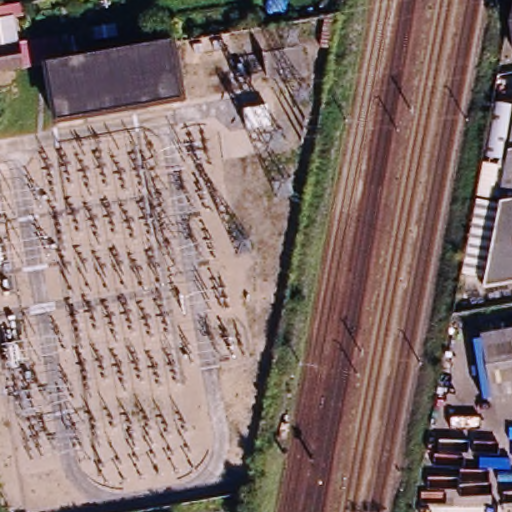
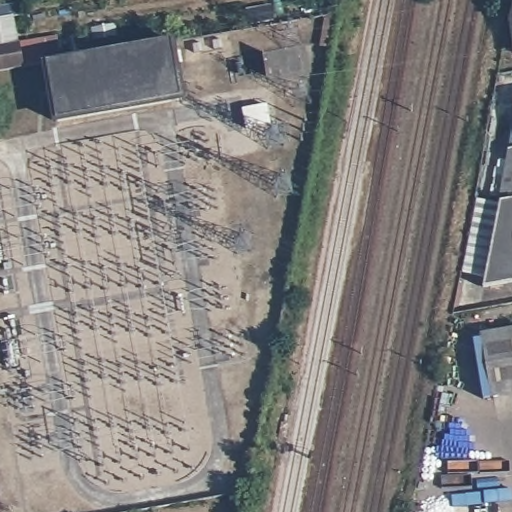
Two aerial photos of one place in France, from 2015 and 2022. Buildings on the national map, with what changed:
unchanged [(20,4),(22,15),(0,18),(0,7),(20,4)]
unchanged [(512,12),(512,49),(508,23),(512,12)]
unchanged [(80,49),(68,51),(66,36),(77,34),(80,49)]
unchanged [(0,71),(0,46),(43,39),(47,63),(45,64),(0,71)]
unchanged [(180,104),(54,126),(45,64),(47,63),(169,43),(180,104)]
unchanged [(255,108),(260,131),(240,135),(237,111),(255,108)]
unchanged [(492,230),(512,121),(512,283),(481,288),(492,230)]
unchanged [(478,333),(512,327),(512,390),(488,394),(478,333)]

